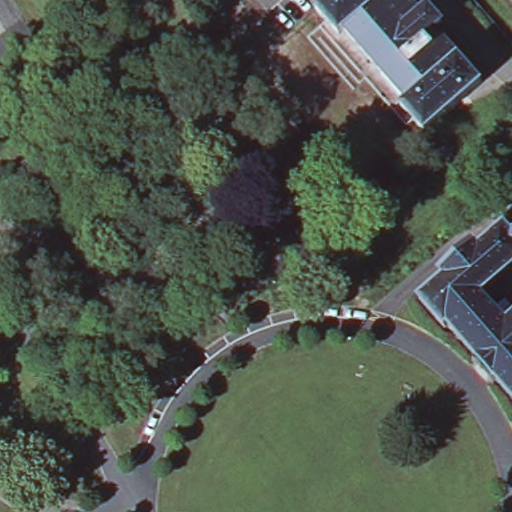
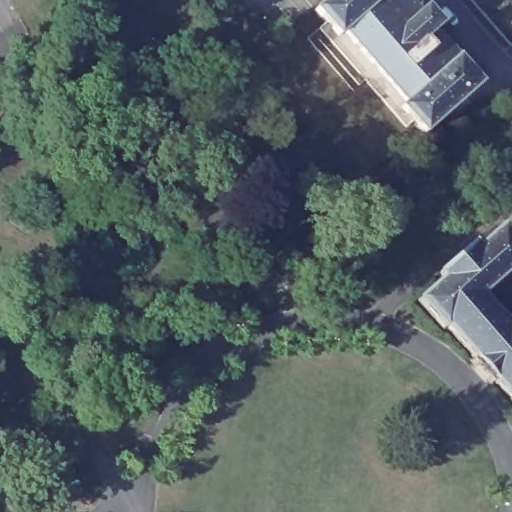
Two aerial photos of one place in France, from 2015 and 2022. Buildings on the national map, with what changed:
unchanged [(315,12),(330,0),(387,0),(407,22),(415,15),(430,30),(420,37),(465,87),(418,128),(395,102),(400,97),(343,34),(338,38),(315,12)]
unchanged [(422,303),(443,285),(439,280),(476,249),(481,254),(506,232),(510,237),(512,236),(512,275),(484,299),(504,322),(512,315),(512,400),(497,382),(492,386),(488,382),(484,382),(472,367),(475,365),(470,359),(474,356),(450,328),(444,328),(422,303)]

